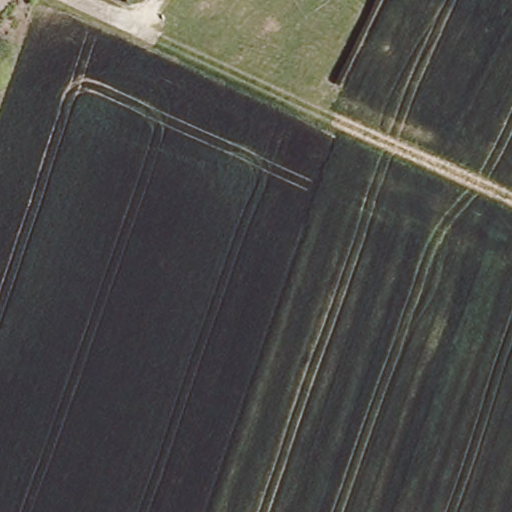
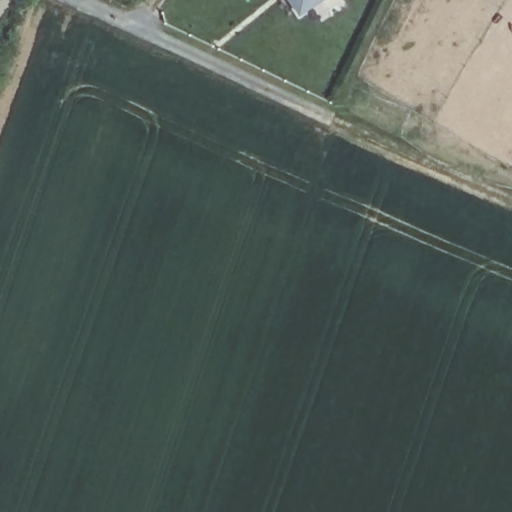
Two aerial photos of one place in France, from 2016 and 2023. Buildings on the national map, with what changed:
new [(300,16),(289,0),(323,0),(300,16)]

